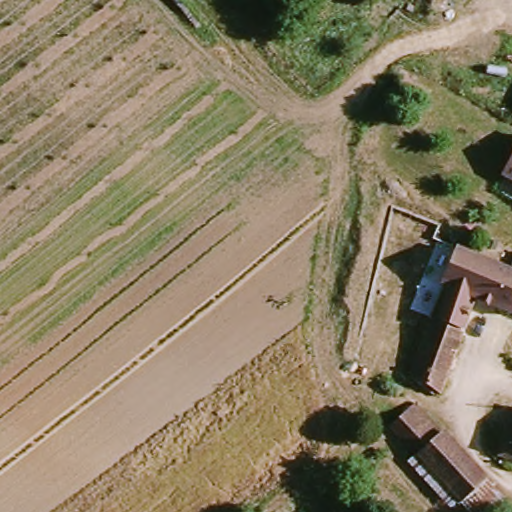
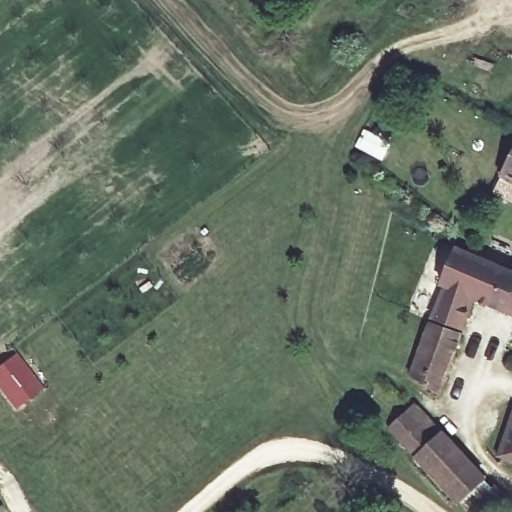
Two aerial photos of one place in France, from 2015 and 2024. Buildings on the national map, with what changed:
unchanged [(428,0),(475,0),(429,5),(428,0)]
unchanged [(510,183),(500,179),(512,155),(512,184),(510,183)]
unchanged [(445,332),(424,322),(442,282),(454,255),(472,261),(512,276),(512,302),(507,316),(472,302),(460,326),(455,337),(445,332)]
unchanged [(402,383),(410,365),(413,366),(425,334),(437,339),(452,345),(455,346),(430,404),(420,400),(400,391),(402,383)]
new [(43,388),(17,408),(0,387),(0,368),(18,354),(43,388)]
unchanged [(422,468),(394,440),(411,421),(420,416),(448,442),(441,448),(422,468)]
unchanged [(512,420),(512,461),(499,455),(512,420)]
unchanged [(491,483),(465,509),(422,468),(441,448),(448,442),(479,471),(491,483)]
unchanged [(512,504),(512,505),(505,512),(468,512),(465,509),(491,483),(512,504)]

